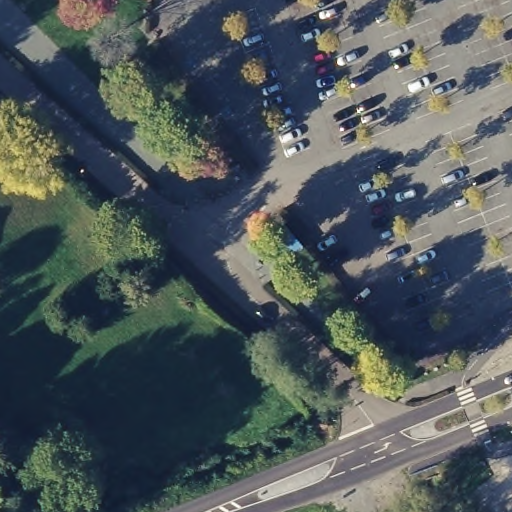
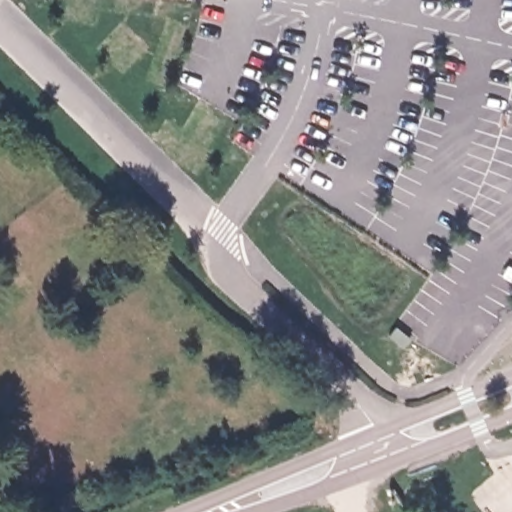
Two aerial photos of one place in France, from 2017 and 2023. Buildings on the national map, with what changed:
[]

